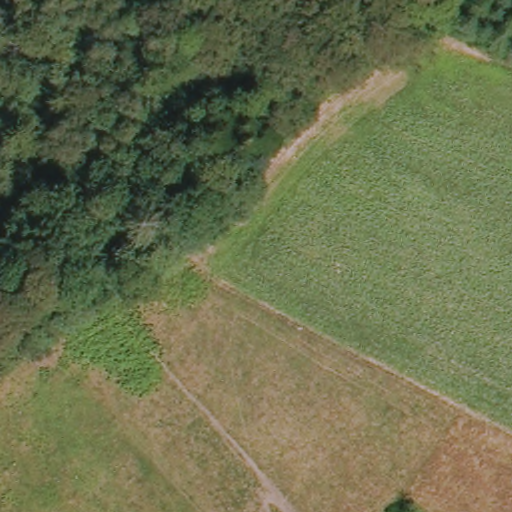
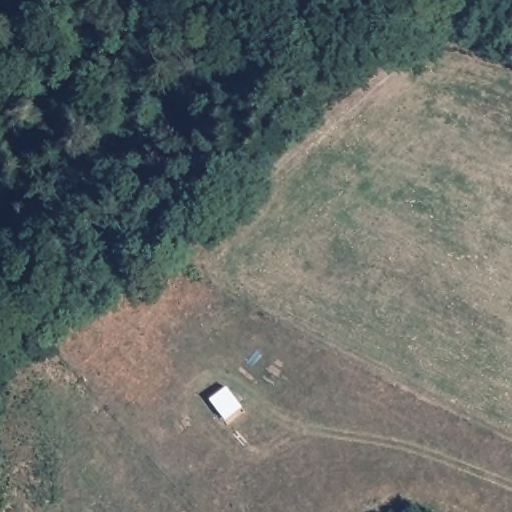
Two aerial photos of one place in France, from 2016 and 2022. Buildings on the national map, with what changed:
[]

